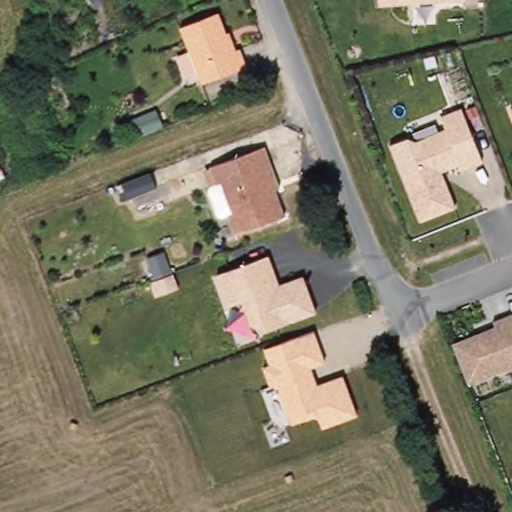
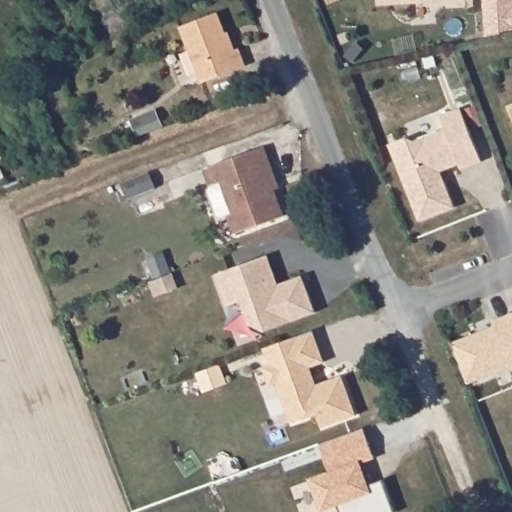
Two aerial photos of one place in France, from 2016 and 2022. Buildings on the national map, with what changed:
unchanged [(379,0),(452,0),(379,6),(379,0)]
new [(484,0),(512,0),(512,31),(486,37),(484,0)]
unchanged [(247,65),(205,81),(201,75),(187,81),(177,57),(191,51),(182,28),(220,13),(247,65)]
unchanged [(512,108),(511,107),(512,107),(512,108)]
unchanged [(412,138),(414,141),(448,128),(443,115),(463,108),(482,159),(442,172),(458,207),(421,221),(391,145),(412,138)]
unchanged [(267,148),(280,188),(276,188),(286,216),(236,234),(230,217),(235,215),(222,182),(216,183),(211,167),(267,148)]
new [(148,171),(154,188),(125,199),(119,182),(148,171)]
unchanged [(252,335),(241,301),(224,306),(213,274),(267,254),(278,284),(300,277),(315,314),(252,335)]
unchanged [(494,320),(512,314),(512,366),(470,382),(455,342),(495,326),(494,320)]
unchanged [(314,333),(324,362),(311,367),(317,386),(343,376),(357,416),(322,428),(317,416),(291,425),(277,385),(271,388),(263,368),(269,366),(264,350),(314,333)]
new [(375,459),(363,464),(370,484),(381,481),(392,511),(390,512),(341,512),(339,504),(321,511),(308,477),(328,470),(319,444),(362,428),(375,459)]

